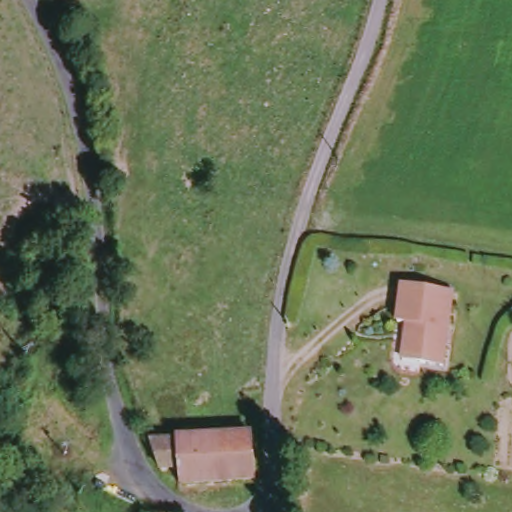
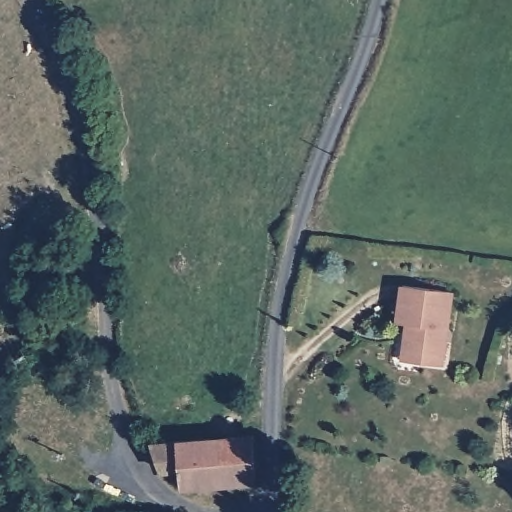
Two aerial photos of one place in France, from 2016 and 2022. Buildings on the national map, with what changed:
unchanged [(447,291),(442,364),(400,361),(402,324),(393,324),(397,286),(447,291)]
unchanged [(209,440),(235,438),(252,437),(257,478),(182,485),(180,467),(156,471),(147,447),(209,440)]

